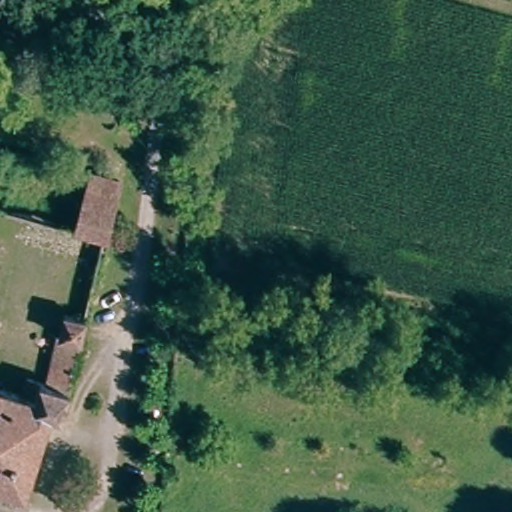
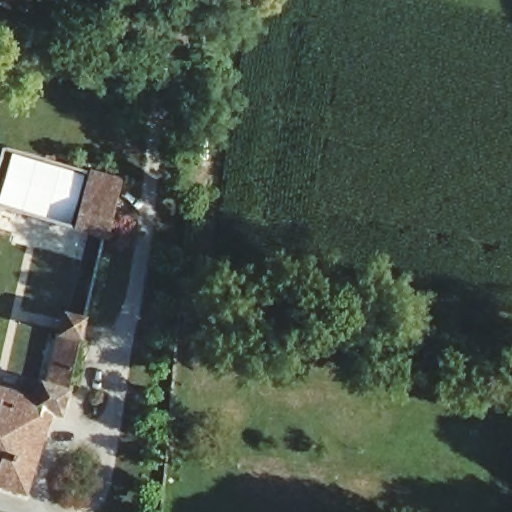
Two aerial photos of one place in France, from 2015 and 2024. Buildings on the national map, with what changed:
new [(72,229),(0,207),(0,147),(4,148),(85,171),(72,229)]
unchanged [(125,178),(108,239),(71,232),(85,168),(125,178)]
demolished [(86,325),(67,320),(81,264),(89,266),(92,244),(105,247),(86,325)]
unchanged [(43,419),(25,495),(0,488),(0,390),(21,399),(26,385),(49,392),(61,346),(67,320),(86,325),(80,350),(63,423),(43,419)]

